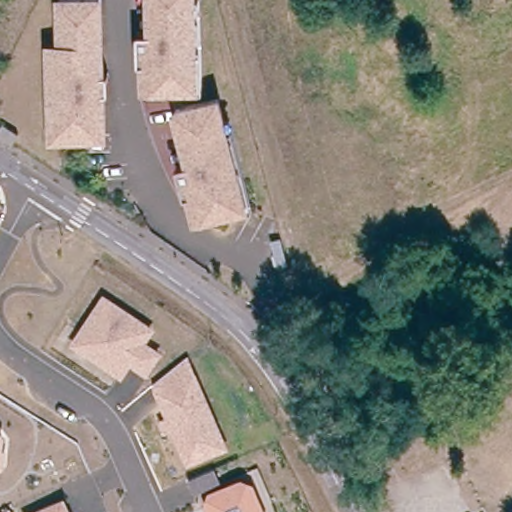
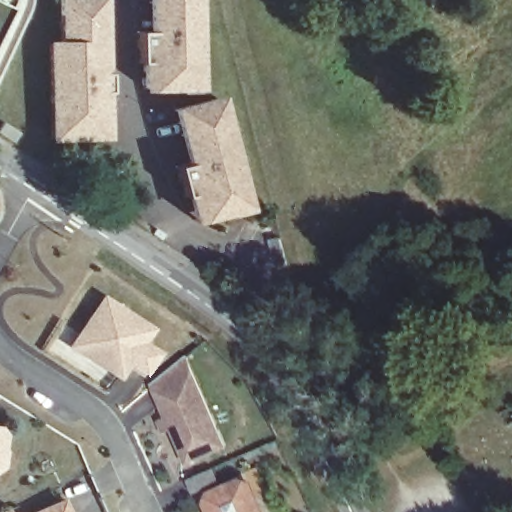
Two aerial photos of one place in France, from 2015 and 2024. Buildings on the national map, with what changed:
new [(34,8),(15,50),(0,79),(0,0),(36,0),(34,8)]
unchanged [(56,39),(56,0),(105,0),(109,141),(48,144),(44,40),(56,39)]
unchanged [(139,30),(145,30),(146,0),(198,0),(200,91),(139,91),(139,30)]
unchanged [(221,93),(249,209),(191,222),(176,165),(186,162),(172,108),(221,93)]
unchanged [(156,327),(148,342),(164,352),(148,377),(130,366),(120,380),(68,345),(101,292),(156,327)]
unchanged [(188,354),(227,445),(185,463),(172,430),(162,434),(156,419),(164,415),(151,383),(188,354)]
unchanged [(4,466),(0,469),(0,425),(6,433),(4,466)]
unchanged [(239,478),(254,482),(268,511),(268,512),(207,512),(203,503),(208,491),(239,478)]
unchanged [(72,512),(29,512),(65,495),(72,512)]
new [(17,512),(0,512),(0,510),(14,504),(17,512)]

